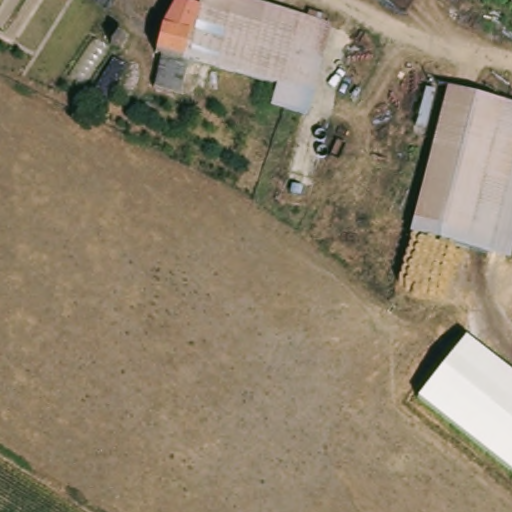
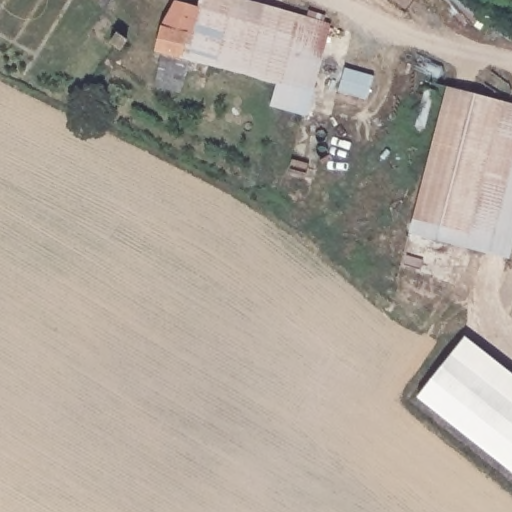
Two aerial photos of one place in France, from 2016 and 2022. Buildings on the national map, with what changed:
unchanged [(197,10),(200,0),(233,0),(321,27),(326,28),(307,95),(277,87),(184,61),(197,10)]
unchanged [(176,93),(152,86),(161,56),(156,54),(164,27),(177,4),(197,10),(184,61),(176,93)]
unchanged [(125,38),(117,50),(107,44),(114,32),(125,38)]
unchanged [(407,236),(433,135),(445,93),(462,98),(512,110),(512,240),(507,261),(407,236)]
unchanged [(463,337),(512,376),(512,476),(415,398),(463,337)]

